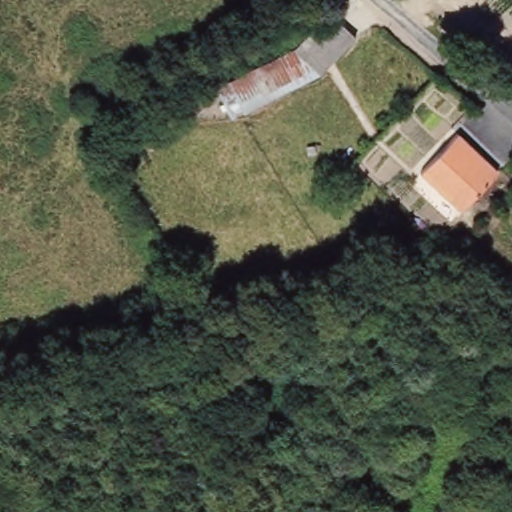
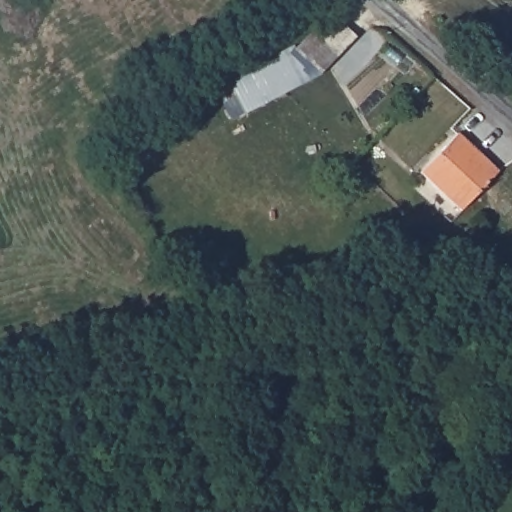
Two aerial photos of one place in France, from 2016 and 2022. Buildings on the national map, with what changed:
unchanged [(305,39),(326,13),(353,38),(319,74),(295,52),(305,39)]
unchanged [(295,52),(319,74),(243,114),(229,87),(295,52)]
unchanged [(457,131),(497,170),(457,207),(419,170),(457,131)]

